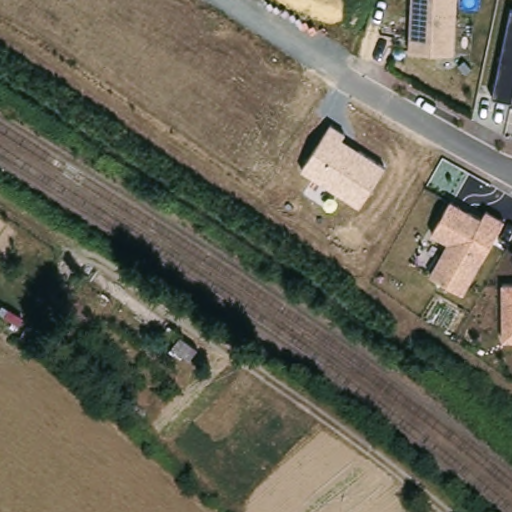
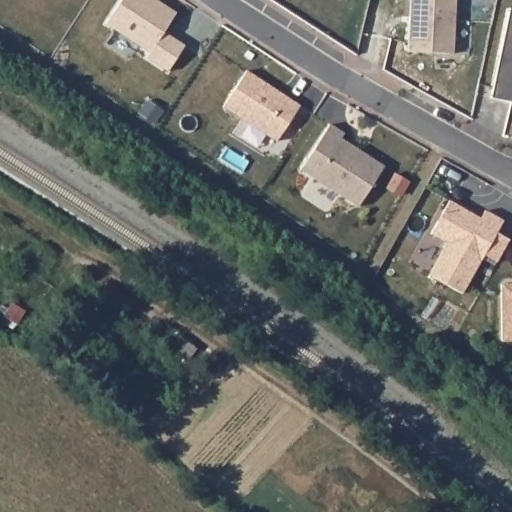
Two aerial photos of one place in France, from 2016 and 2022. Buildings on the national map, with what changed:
new [(122,0),(156,0),(177,14),(164,32),(185,46),(169,72),(146,58),(150,52),(106,24),(122,0)]
unchanged [(454,55),(406,52),(409,0),(456,0),(454,55)]
unchanged [(493,99),(512,9),(512,102),(493,99)]
new [(247,71),(300,106),(277,142),(224,107),(247,71)]
unchanged [(345,134),(342,140),(385,167),(359,207),(301,172),(330,125),(345,134)]
unchanged [(431,234),(449,202),(479,218),(485,209),(506,220),(463,295),(428,275),(446,243),(431,234)]
unchanged [(501,342),(501,283),(512,284),(512,342),(501,342)]

